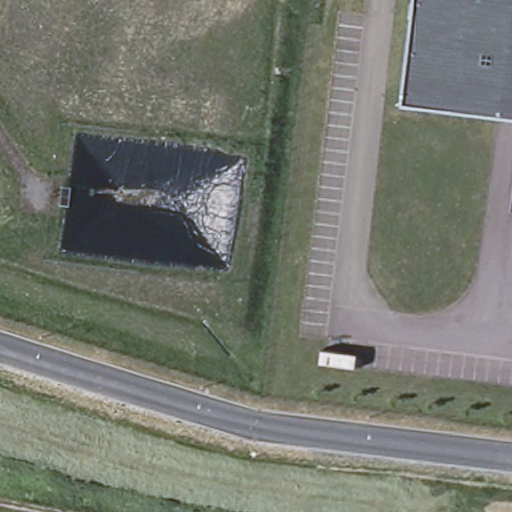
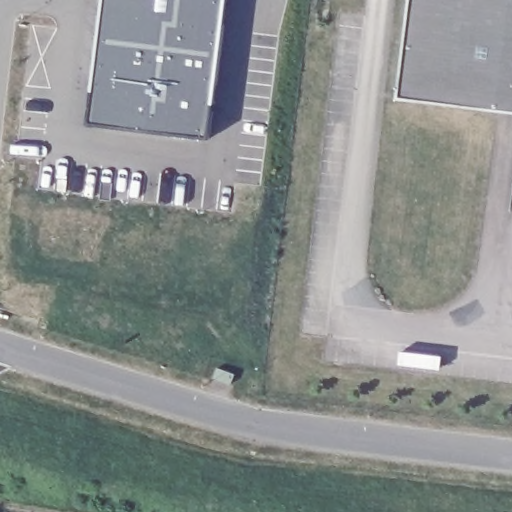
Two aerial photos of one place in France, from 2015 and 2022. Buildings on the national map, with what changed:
new [(209,136),(87,122),(102,0),(226,0),(209,136)]
unchanged [(394,94),(406,0),(512,0),(512,108),(394,94)]

